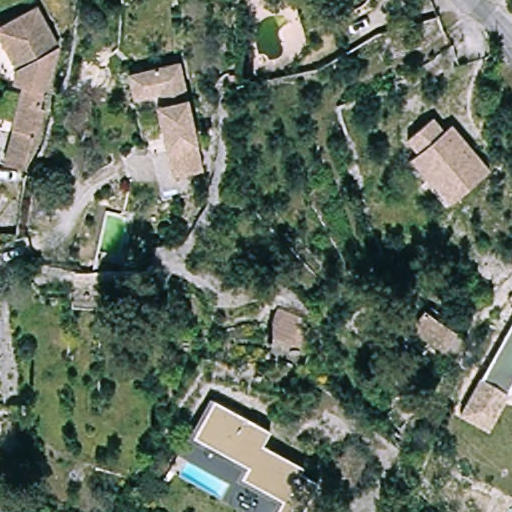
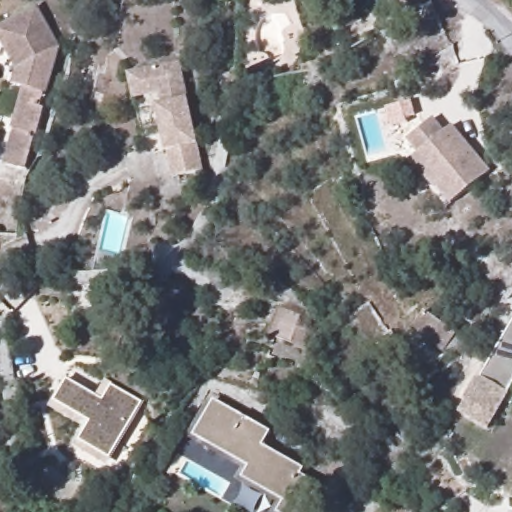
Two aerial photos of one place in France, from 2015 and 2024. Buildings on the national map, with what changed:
unchanged [(37,4),(58,45),(47,93),(28,170),(1,163),(10,128),(19,87),(10,85),(14,68),(0,42),(0,23),(37,4)]
unchanged [(176,179),(171,153),(160,105),(166,104),(164,95),(139,100),(132,73),(186,61),(204,145),(209,172),(176,179)]
unchanged [(442,113),(450,128),(459,123),(487,176),(442,199),(429,179),(431,178),(412,148),(421,144),(413,128),(442,113)]
unchanged [(259,332),(270,304),(275,305),(292,313),(298,316),(309,347),(259,332)]
unchanged [(457,334),(445,351),(437,345),(427,357),(411,344),(421,333),(414,327),(407,321),(420,304),(457,334)]
unchanged [(457,410),(512,314),(512,385),(487,428),(457,410)]
new [(95,393),(104,378),(144,400),(107,466),(72,446),(83,427),(48,408),(66,377),(95,393)]
unchanged [(274,432),(266,445),(307,468),(305,473),(323,483),(307,512),(278,512),(284,502),(242,479),(248,468),(193,438),(194,436),(214,399),(274,432)]
unchanged [(8,494),(5,508),(4,512),(0,512),(0,493),(8,494)]

